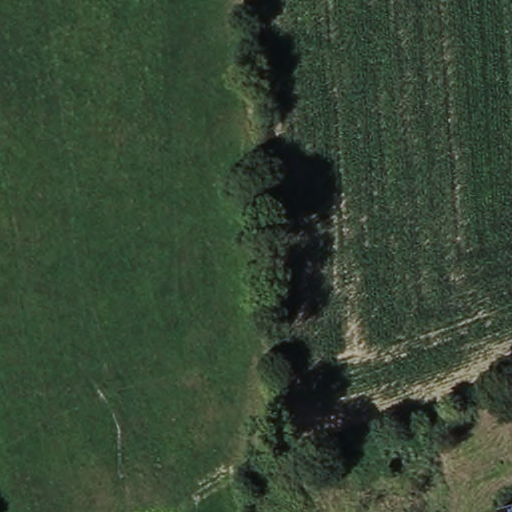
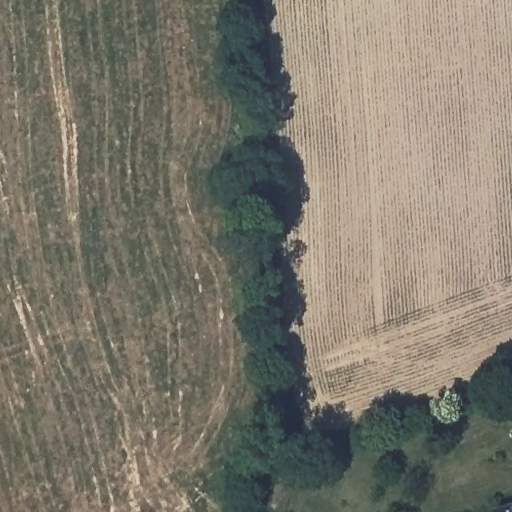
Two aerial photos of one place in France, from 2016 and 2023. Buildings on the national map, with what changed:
unchanged [(512,512),(510,512),(512,511),(512,512)]

